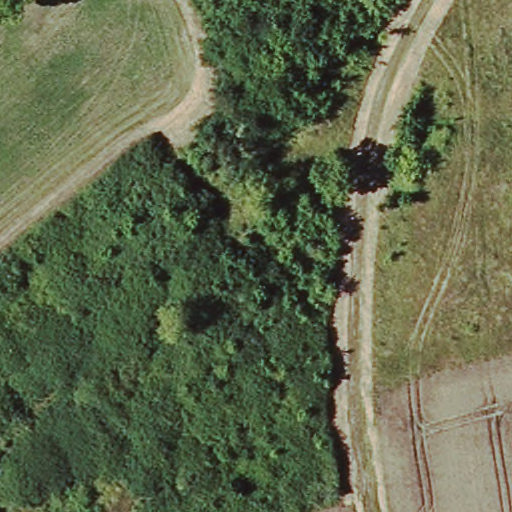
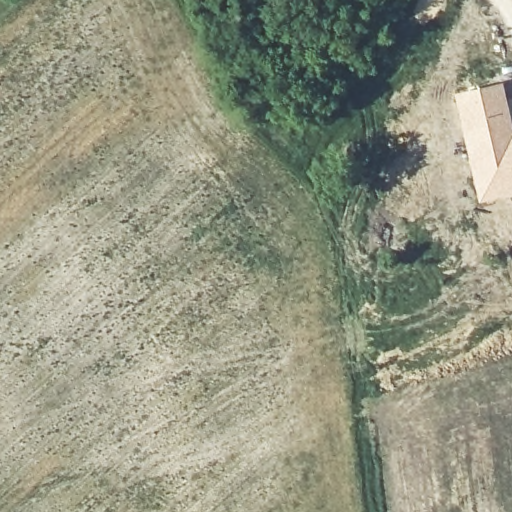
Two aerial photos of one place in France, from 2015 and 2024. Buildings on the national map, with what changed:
new [(502,80),(512,122),(512,194),(479,202),(453,92),(502,80)]

